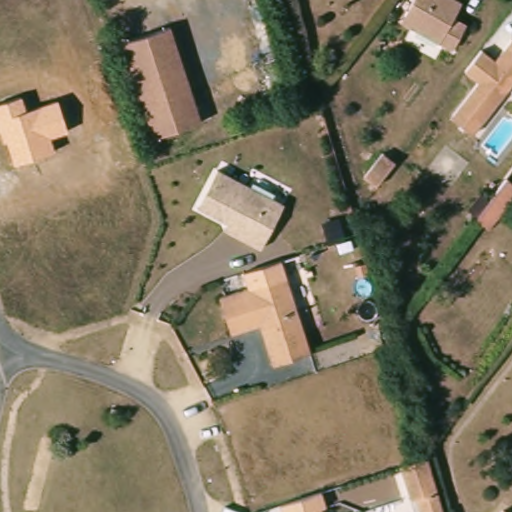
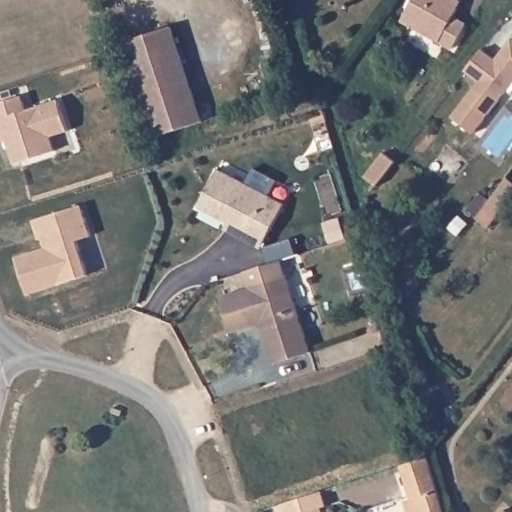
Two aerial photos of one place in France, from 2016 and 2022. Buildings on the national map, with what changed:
unchanged [(457,20),(470,27),(456,50),(406,20),(418,0),(449,0),(463,8),(457,20)]
unchanged [(123,40),(174,24),(205,120),(156,136),(123,40)]
unchanged [(482,50),(494,59),(510,38),(512,39),(512,80),(472,133),(451,116),(478,80),(466,71),(482,50)]
unchanged [(24,94),(29,108),(57,99),(69,131),(51,138),(56,154),(13,165),(5,140),(3,141),(0,132),(0,103),(24,94)]
unchanged [(228,218),(199,202),(218,164),(284,199),(261,244),(246,235),(225,224),(228,218)]
unchanged [(375,164),(387,173),(368,196),(356,187),(375,164)]
unchanged [(512,194),(492,219),(480,210),(510,172),(512,173),(512,194)]
new [(82,205),(92,234),(77,240),(88,274),(28,294),(16,257),(45,247),(41,239),(39,240),(33,221),(82,205)]
unchanged [(232,328),(221,292),(287,271),(312,347),(274,359),(267,335),(261,319),(232,328)]
unchanged [(417,494),(412,494),(403,463),(431,455),(446,512),(423,512),(417,494)]
unchanged [(321,503),(324,512),(293,512),(321,503)]
unchanged [(512,512),(503,512),(508,507),(512,509),(512,512)]

